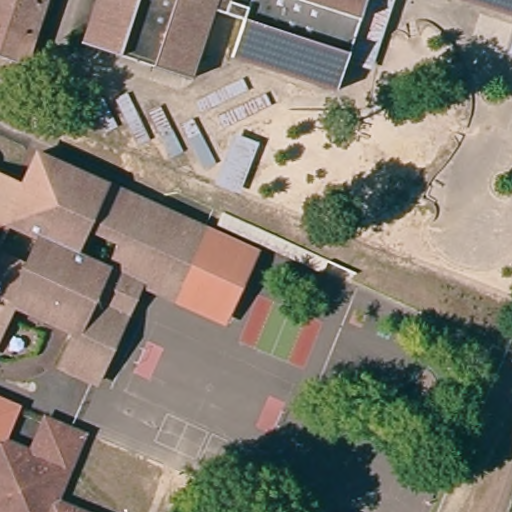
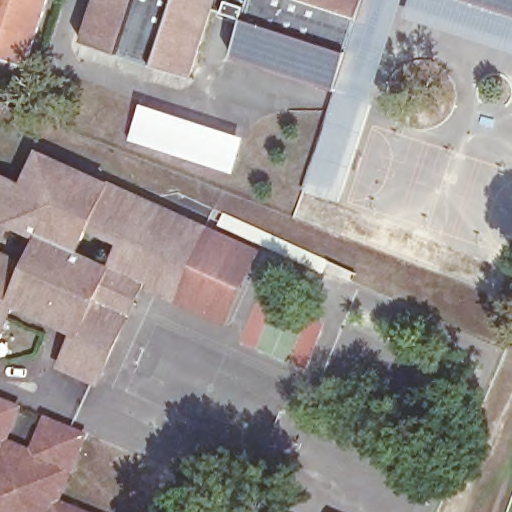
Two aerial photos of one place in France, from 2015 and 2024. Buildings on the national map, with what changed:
unchanged [(24,65),(0,56),(0,0),(45,0),(24,65)]
unchanged [(249,5),(251,0),(366,0),(339,95),(229,60),(242,23),(213,13),(191,80),(83,45),(97,0),(234,0),(249,5)]
new [(372,99),(340,203),(303,190),(337,95),(339,95),(366,0),(404,0),(372,99)]
new [(512,54),(404,17),(409,0),(464,0),(512,16),(512,54)]
unchanged [(512,16),(464,0),(512,0),(512,16)]
new [(130,141),(140,104),(244,137),(232,175),(130,141)]
unchanged [(255,290),(239,327),(174,300),(142,286),(99,386),(60,371),(76,336),(13,310),(0,340),(0,258),(25,268),(38,237),(3,223),(0,222),(0,179),(22,188),(36,154),(152,206),(203,231),(268,258),(255,290)]
unchanged [(0,231),(0,222),(3,223),(0,231)]
unchanged [(18,407),(4,441),(3,443),(0,442),(0,400),(18,407)]
unchanged [(3,443),(4,441),(35,455),(51,421),(90,438),(60,506),(74,512),(0,512),(0,451),(3,443)]
unchanged [(0,451),(0,442),(3,443),(0,451)]

